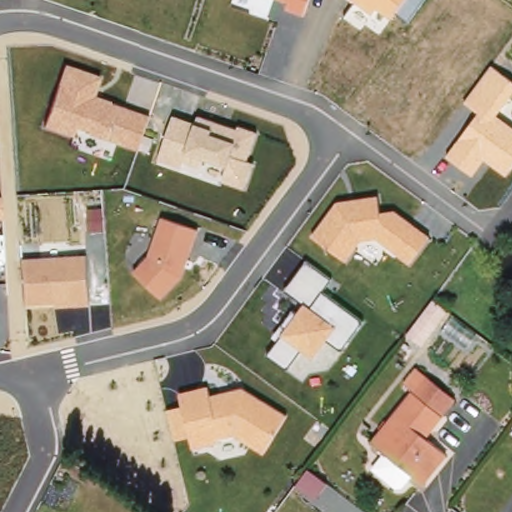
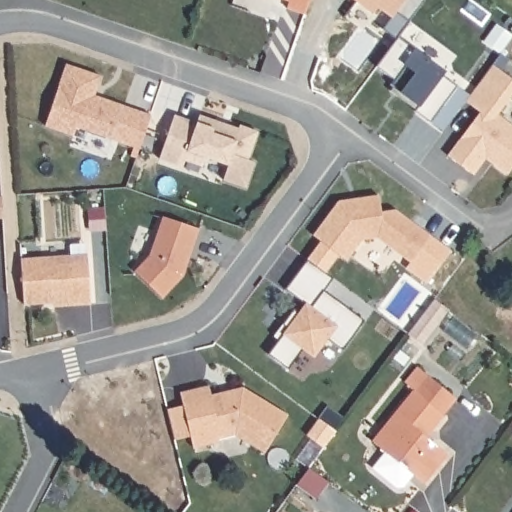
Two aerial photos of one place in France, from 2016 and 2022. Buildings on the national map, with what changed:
unchanged [(305,15),(285,9),(288,1),(286,0),(310,0),(305,15)]
unchanged [(408,20),(396,12),(392,20),(376,10),(371,15),(351,0),(423,0),(408,20)]
new [(385,84),(389,79),(371,65),(393,36),(440,71),(438,75),(453,85),(426,122),(410,110),(411,109),(385,90),(388,86),(385,84)]
unchanged [(77,130),(75,135),(46,124),(66,66),(102,76),(95,96),(151,115),(139,149),(77,130)]
unchanged [(512,80),(512,94),(496,115),(512,127),(512,169),(507,176),(483,160),(473,175),(447,156),(479,112),(466,101),(492,66),(512,80)]
unchanged [(222,182),(226,166),(202,160),(200,169),(159,157),(171,115),(195,123),(200,115),(257,131),(249,160),(255,162),(246,188),(222,182)]
unchanged [(376,239),(360,241),(347,261),(313,237),(339,204),(377,199),(377,212),(395,211),(428,237),(411,264),(376,239)]
unchanged [(135,275),(149,255),(160,216),(200,228),(184,274),(163,297),(135,275)]
unchanged [(23,306),(18,258),(87,254),(91,302),(23,306)]
unchanged [(327,340),(314,357),(301,349),(288,368),(270,356),(303,301),(288,290),(306,262),(331,279),(325,293),(363,321),(343,350),(327,340)]
unchanged [(455,401),(427,436),(448,454),(425,484),(413,475),(400,492),(373,473),(386,455),(374,445),(425,378),(455,401)]
unchanged [(231,435),(219,438),(219,442),(192,450),(188,438),(176,442),(167,410),(184,405),(182,395),(209,388),(210,394),(242,388),(288,415),(266,453),(231,435)]

